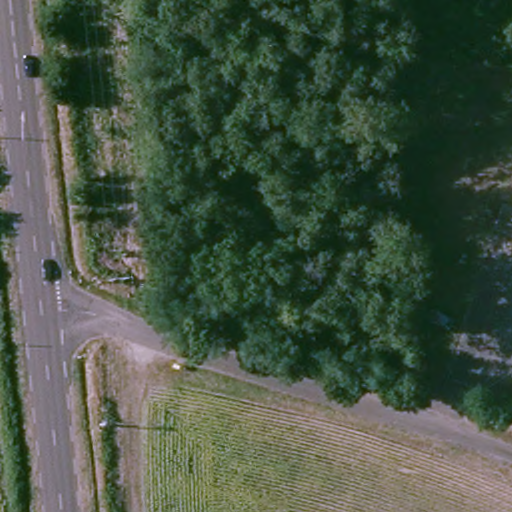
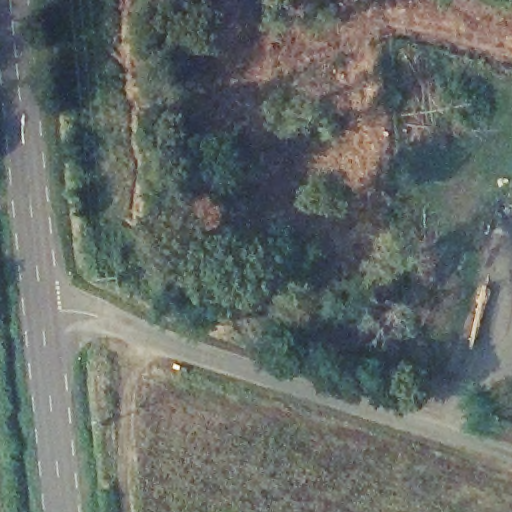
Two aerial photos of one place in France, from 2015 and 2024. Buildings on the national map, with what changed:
[]

